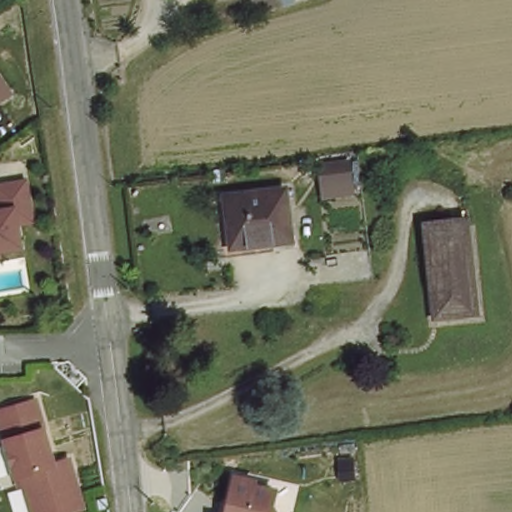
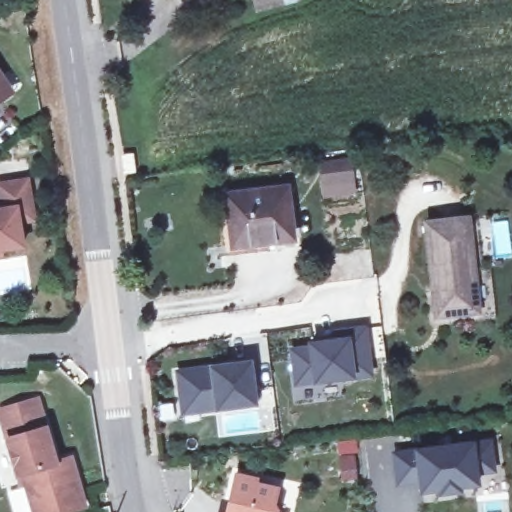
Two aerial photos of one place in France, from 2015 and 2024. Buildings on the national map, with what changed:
unchanged [(248,0),(267,0),(250,6),(248,0)]
unchanged [(0,93),(0,73),(10,86),(0,93)]
unchanged [(358,180),(317,185),(315,157),(357,153),(358,180)]
new [(121,155),(132,154),(134,174),(123,174),(121,155)]
unchanged [(20,179),(27,218),(12,220),(15,244),(0,247),(0,182),(20,179)]
unchanged [(225,195),(283,188),(288,239),(232,245),(225,195)]
unchanged [(423,219),(463,214),(475,305),(436,312),(423,219)]
new [(313,346),(313,342),(337,339),(336,329),(367,325),(372,372),(298,381),(294,348),(313,346)]
new [(183,401),(179,372),(252,362),(258,403),(202,411),(185,413),(183,401)]
unchanged [(11,469),(0,431),(0,402),(30,393),(50,457),(64,452),(78,500),(37,512),(29,512),(18,474),(16,467),(11,469)]
new [(400,483),(397,453),(475,443),(492,441),(496,471),(479,473),(480,484),(462,486),(462,490),(443,493),(443,489),(432,490),(425,491),(423,480),(400,483)]
unchanged [(227,506),(235,473),(255,477),(253,482),(274,487),(270,502),(274,508),(273,512),(225,512),(227,506)]

